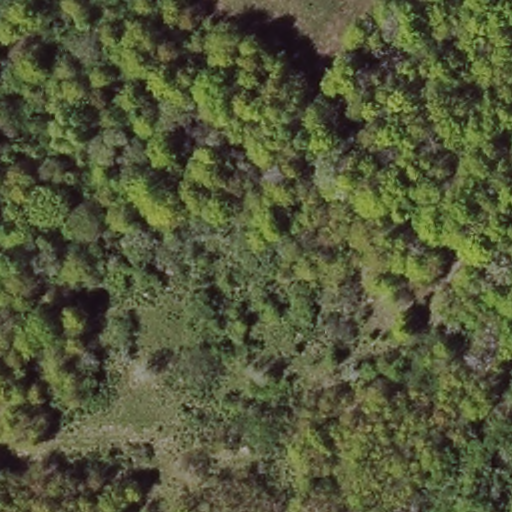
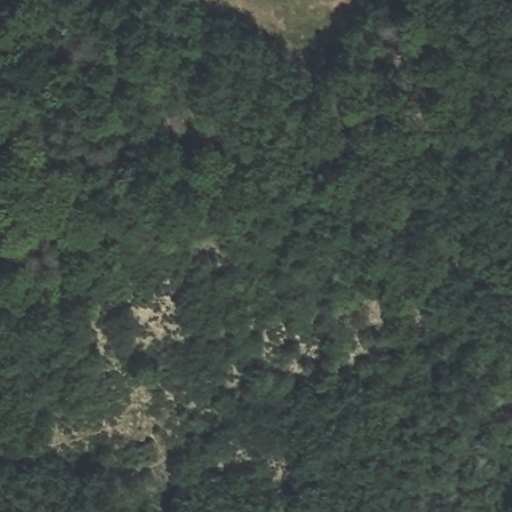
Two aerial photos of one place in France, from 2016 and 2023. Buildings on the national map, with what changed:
[]

